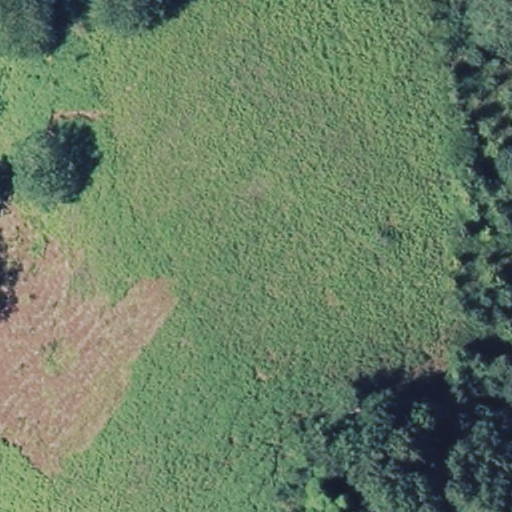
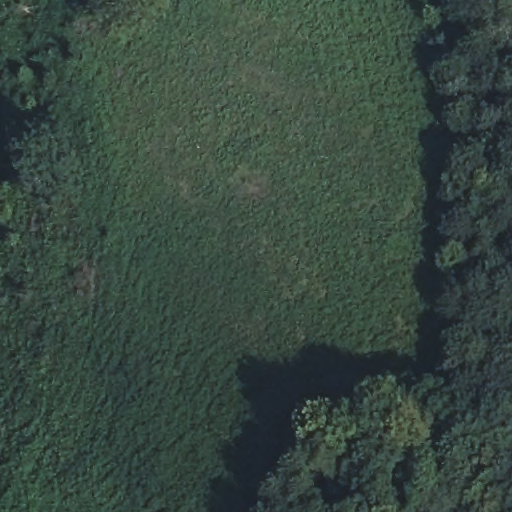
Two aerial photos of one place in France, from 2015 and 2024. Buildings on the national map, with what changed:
unchanged [(371,495),(339,496),(337,472),(367,466),(371,495)]

